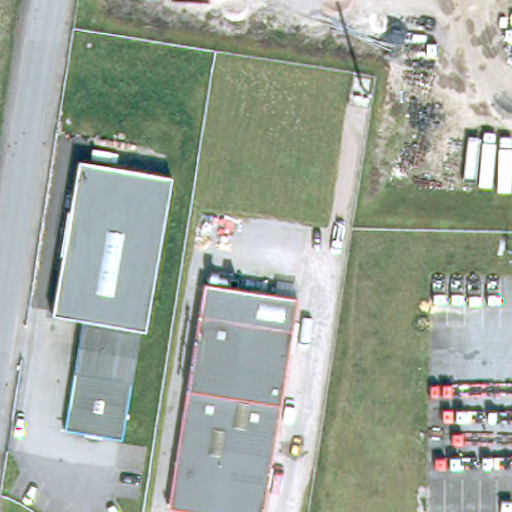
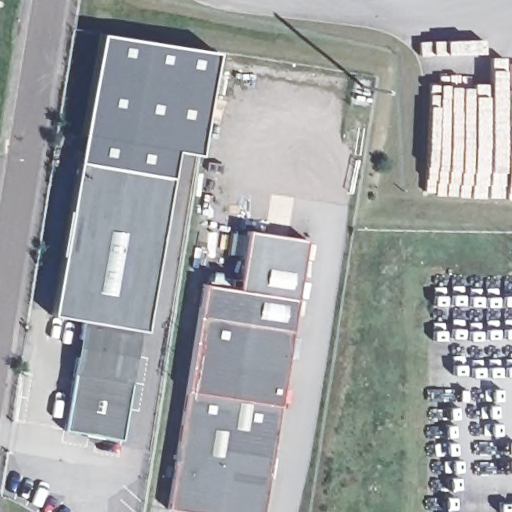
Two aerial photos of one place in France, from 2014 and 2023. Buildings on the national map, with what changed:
new [(83,166),(77,160),(99,32),(215,51),(199,154),(175,150),(167,179),(83,166)]
unchanged [(83,166),(167,179),(143,334),(138,333),(122,443),(65,434),(81,324),(60,321),(83,166)]
new [(305,239),(295,302),(285,300),(236,294),(247,230),(305,239)]
unchanged [(285,300),(257,512),(170,512),(162,511),(192,288),(285,300)]

